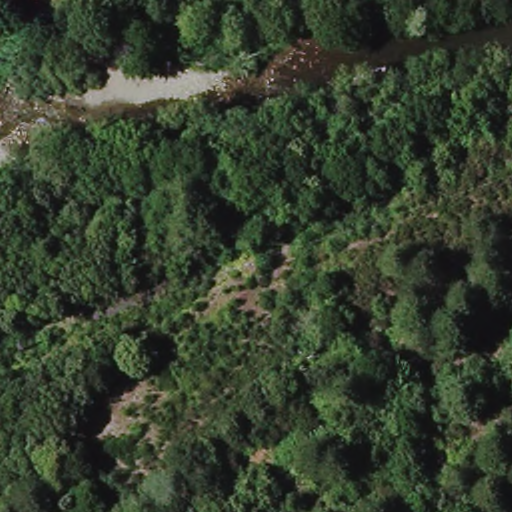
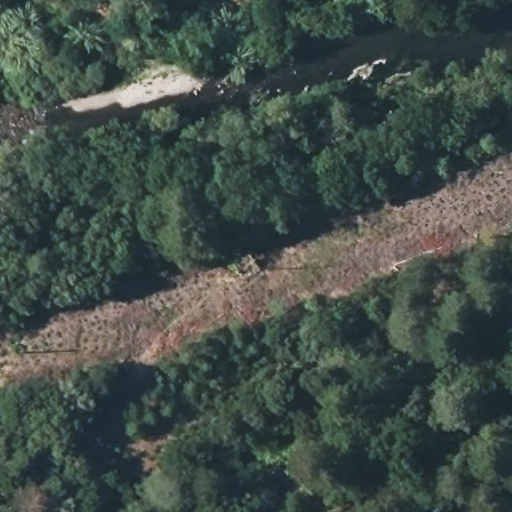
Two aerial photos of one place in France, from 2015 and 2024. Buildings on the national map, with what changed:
unchanged [(262,252),(266,266),(246,271),(242,259),(262,252)]
unchanged [(6,512),(0,512),(0,511),(6,511),(6,512)]

